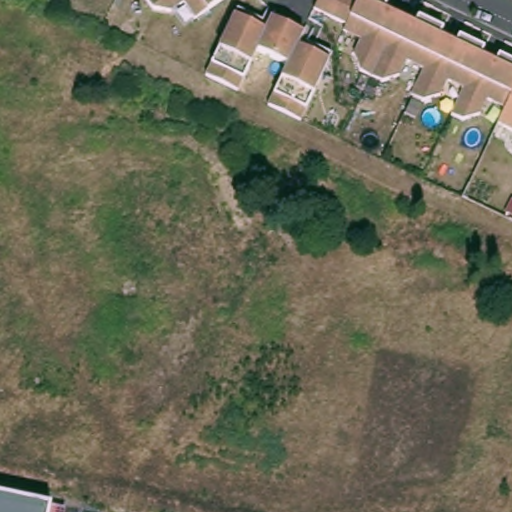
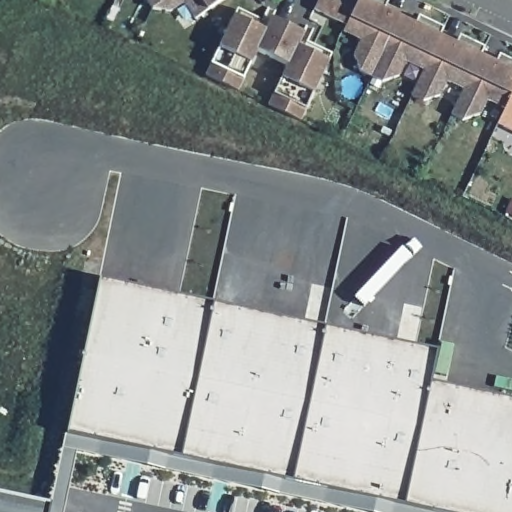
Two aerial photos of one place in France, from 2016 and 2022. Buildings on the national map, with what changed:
unchanged [(170,8),(152,5),(150,0),(220,0),(193,19),(185,1),(170,8)]
unchanged [(497,123),(503,106),(487,100),(480,115),(463,117),(452,113),(462,88),(447,80),(441,95),(422,99),(412,95),(423,68),(405,61),(399,77),(381,79),(361,69),(355,50),(360,40),(342,33),(347,23),(316,9),(321,0),(380,0),(390,4),(388,11),(414,24),(417,18),(442,28),(437,36),(453,44),(458,36),(483,47),(481,56),(493,63),(498,56),(512,63),(512,130),(497,123)]
unchanged [(271,105),(287,66),(257,53),(241,89),(209,75),(214,64),(237,9),(265,22),(270,16),(305,33),(300,41),(331,56),(302,120),(271,105)]
demolished [(32,83),(0,81),(0,54),(34,55),(32,83)]
new [(102,274),(437,351),(427,394),(512,412),(512,512),(428,512),(66,430),(102,274)]
unchanged [(65,511),(65,512),(0,512),(0,495),(49,506),(65,511)]

